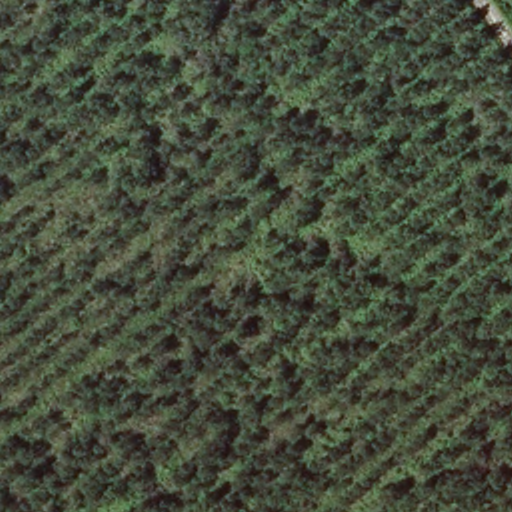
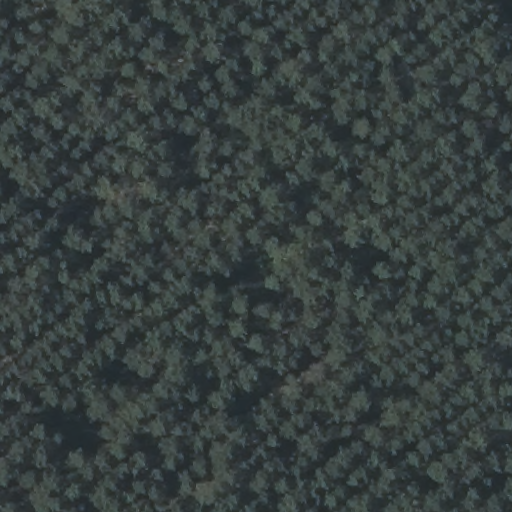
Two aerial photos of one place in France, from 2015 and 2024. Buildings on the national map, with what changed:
[]

